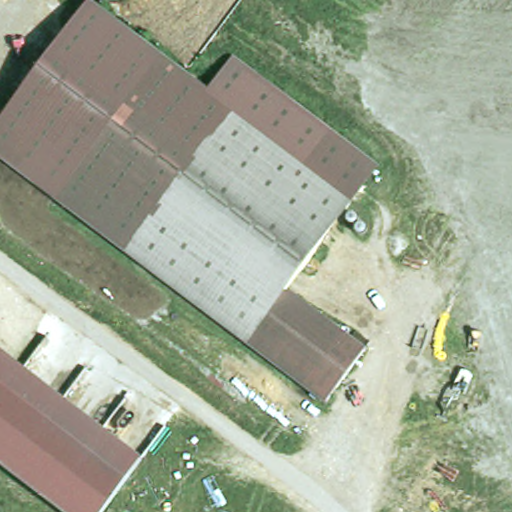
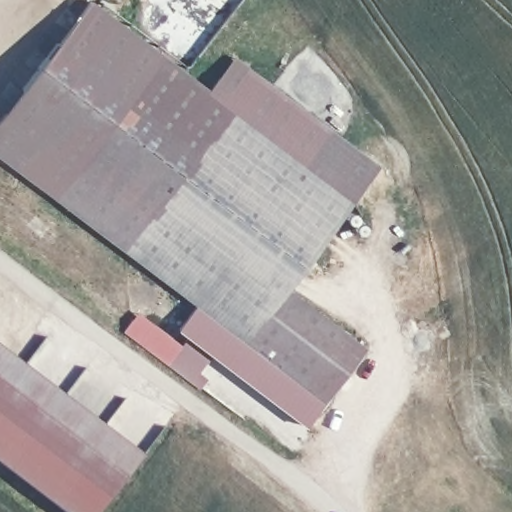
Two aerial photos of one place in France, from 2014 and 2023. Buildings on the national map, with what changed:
unchanged [(292,292),(373,353),(330,407),(325,403),(196,308),(0,161),(0,124),(91,8),(211,98),(357,208),(292,292)]
unchanged [(211,98),(239,61),(383,170),(357,208),(211,98)]
new [(306,428),(207,352),(190,375),(168,358),(185,336),(178,331),(196,308),(325,403),(306,428)]
new [(201,374),(210,380),(202,390),(125,333),(140,313),(184,347),(189,339),(207,352),(213,357),(201,374)]
unchanged [(97,512),(68,512),(0,462),(0,351),(140,455),(97,512)]

